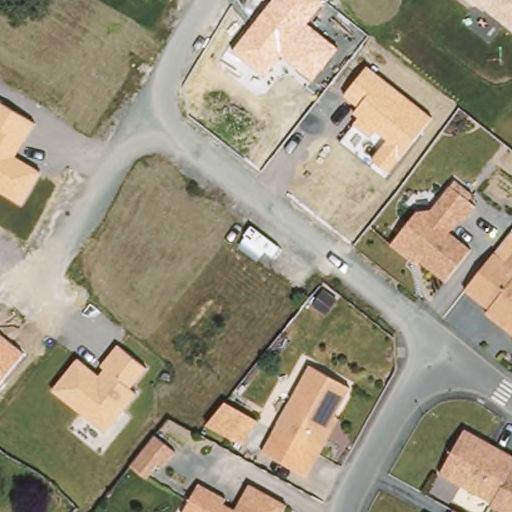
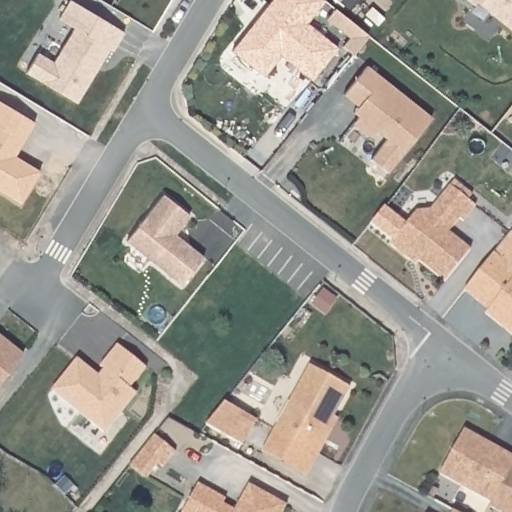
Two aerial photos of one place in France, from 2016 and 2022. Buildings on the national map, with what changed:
new [(31,50),(46,59),(63,31),(47,22),(60,0),(68,0),(116,28),(105,47),(102,45),(70,99),(19,70),(31,50)]
unchanged [(232,51),(273,0),(324,0),(325,1),(307,23),(339,48),(313,81),(280,56),(264,77),(232,51)]
unchanged [(473,6),(466,0),(512,0),(512,30),(476,1),(473,6)]
new [(326,2),(360,28),(345,48),(334,39),(341,30),(318,12),(326,2)]
unchanged [(386,139),(376,130),(370,137),(353,123),(358,116),(354,112),(358,106),(344,95),(368,66),(432,117),(389,173),(372,160),(386,139)]
unchanged [(41,172),(20,204),(0,192),(0,101),(36,123),(15,157),(41,172)]
unchanged [(473,202),(450,230),(467,248),(441,277),(418,260),(411,261),(387,242),(412,208),(422,217),(449,183),(473,202)]
new [(200,250),(178,278),(122,235),(159,188),(185,209),(171,227),(186,239),(200,250)]
unchanged [(490,307),(462,287),(491,250),(509,230),(512,232),(512,335),(485,313),(490,307)]
unchanged [(24,353),(0,384),(0,333),(24,353)]
unchanged [(117,345),(147,368),(129,388),(138,394),(105,433),(51,390),(77,358),(99,376),(104,369),(100,366),(117,345)]
unchanged [(351,387),(333,418),(337,420),(305,478),(260,452),(309,365),(351,387)]
unchanged [(257,421),(243,445),(206,425),(226,402),(257,421)]
unchanged [(509,461),(512,463),(512,512),(494,512),(486,507),(489,499),(435,472),(458,426),(512,455),(509,461)]
unchanged [(175,451),(162,467),(157,464),(146,477),(129,464),(153,435),(175,451)]
unchanged [(232,509),(246,483),(283,503),(279,512),(179,512),(195,483),(220,503),(232,509)]

